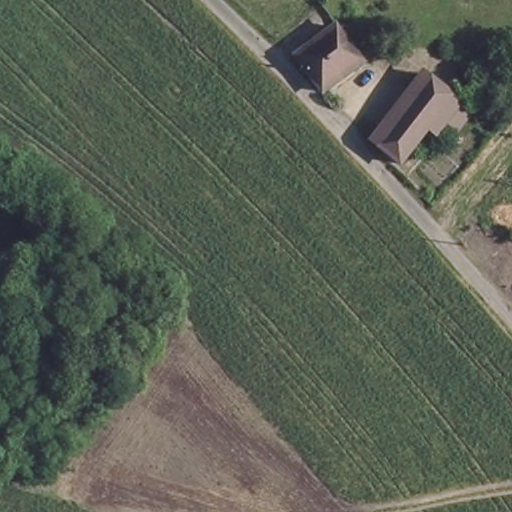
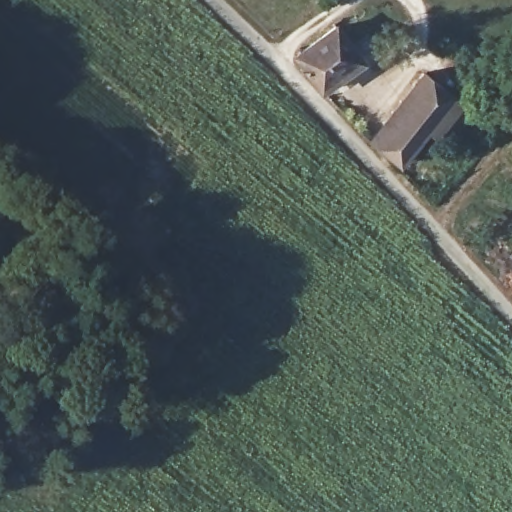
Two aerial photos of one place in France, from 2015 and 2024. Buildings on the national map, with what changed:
unchanged [(340,29),(366,65),(326,94),(300,59),(340,29)]
unchanged [(419,118),(391,152),(371,136),(393,110),(425,70),(453,92),(462,101),(445,121),(436,113),(427,124),(419,118)]

